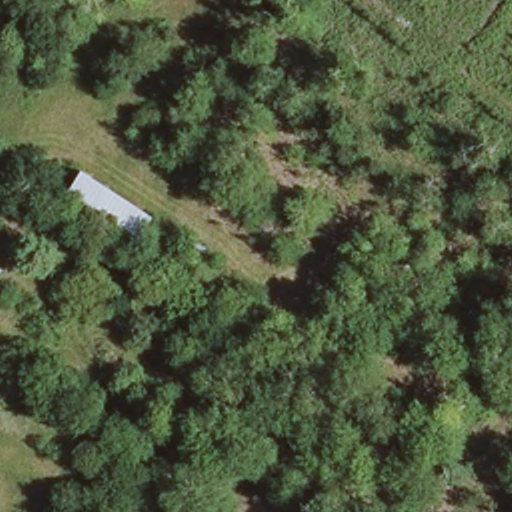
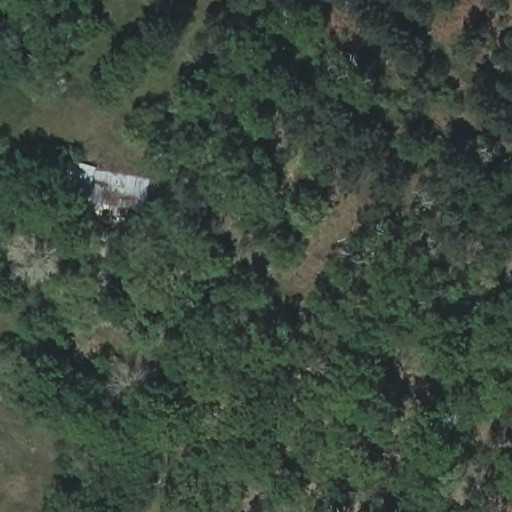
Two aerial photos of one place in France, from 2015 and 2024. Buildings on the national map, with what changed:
unchanged [(150,217),(129,245),(63,197),(82,170),(150,217)]

